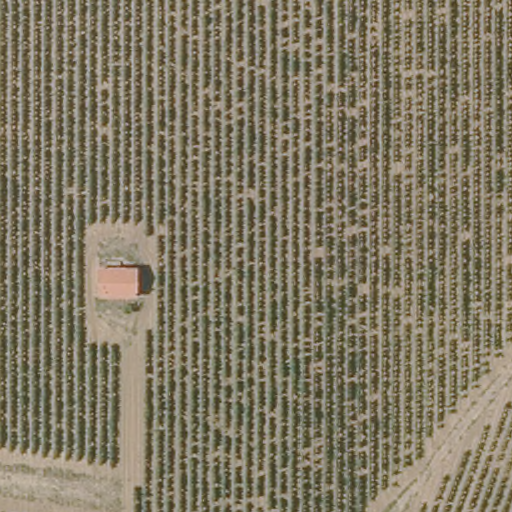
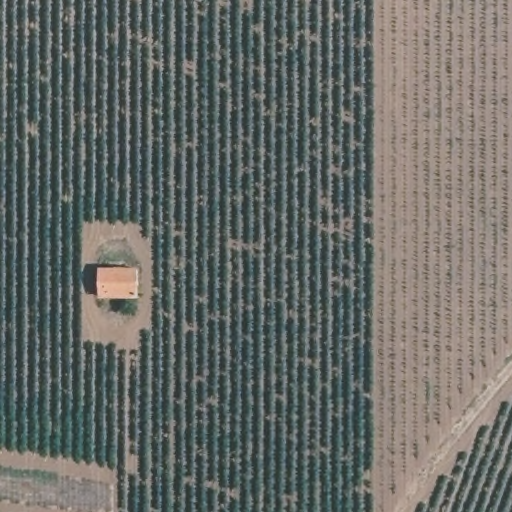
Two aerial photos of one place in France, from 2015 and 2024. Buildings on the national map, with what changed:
unchanged [(144,268),(144,300),(115,300),(103,300),(104,268),(131,268),(138,268),(144,268)]

